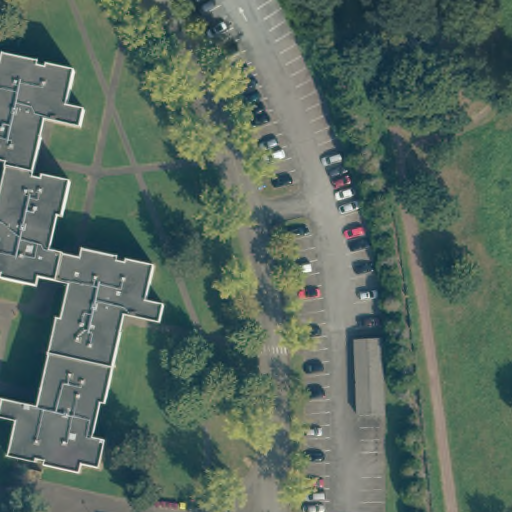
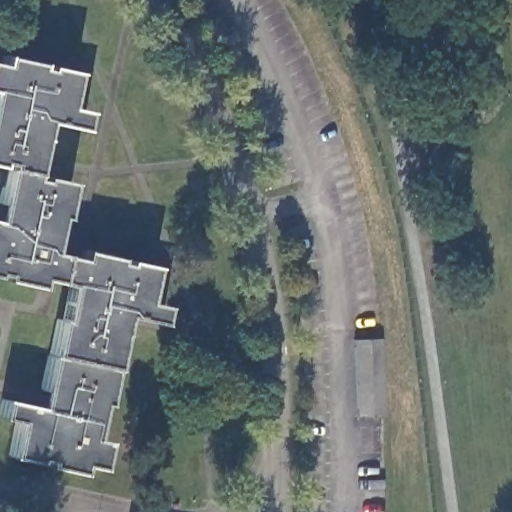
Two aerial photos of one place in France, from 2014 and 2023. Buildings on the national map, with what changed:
unchanged [(35,61),(45,62),(45,60),(73,68),(66,101),(83,105),(79,123),(38,114),(34,130),(39,132),(31,174),(39,176),(41,171),(68,178),(60,213),(56,212),(48,247),(77,253),(80,245),(115,253),(114,257),(124,260),(125,257),(152,264),(145,298),(161,303),(157,320),(117,311),(113,327),(117,329),(102,402),(96,402),(90,436),(101,440),(94,467),(78,463),(76,473),(41,465),(41,461),(31,458),(31,461),(4,454),(11,420),(0,417),(0,397),(40,406),(43,391),(37,389),(54,316),(59,317),(66,282),(38,275),(35,285),(0,277),(0,209),(1,203),(0,203),(0,179),(4,159),(0,158),(0,53),(1,47),(36,56),(35,61)]
unchanged [(380,412),(352,412),(349,338),(377,336),(380,412)]

